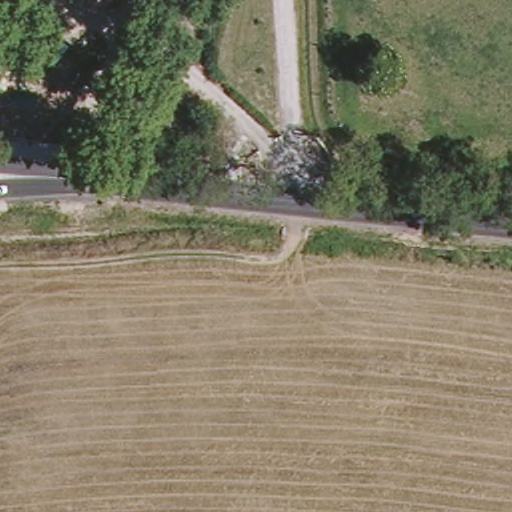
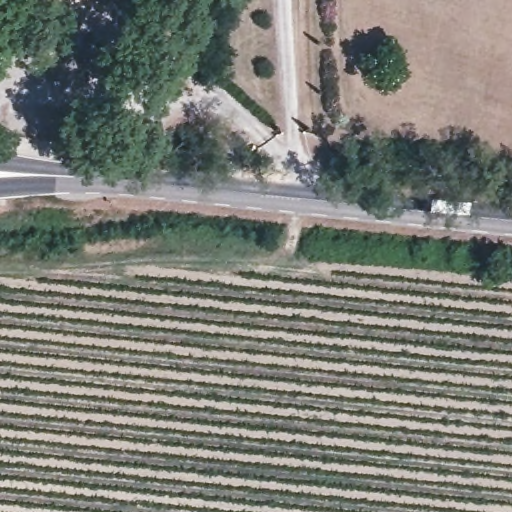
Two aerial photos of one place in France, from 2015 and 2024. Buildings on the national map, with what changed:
unchanged [(110,0),(117,0),(116,1),(110,0)]

